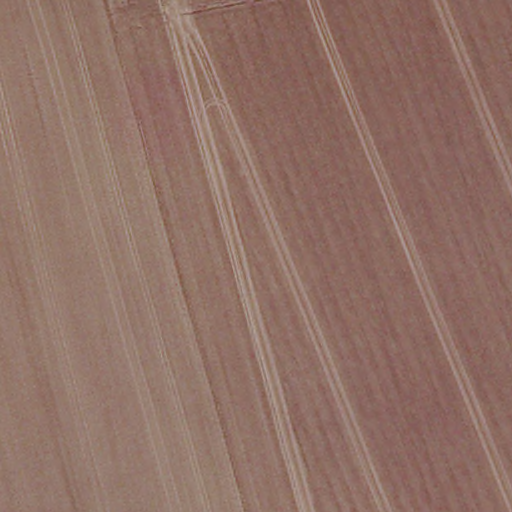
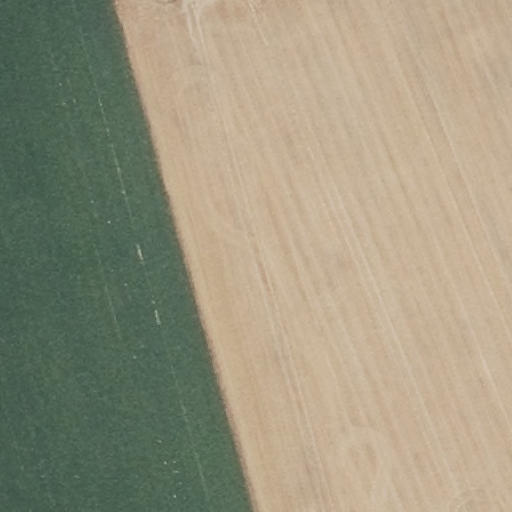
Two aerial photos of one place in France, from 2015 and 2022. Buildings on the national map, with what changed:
[]

